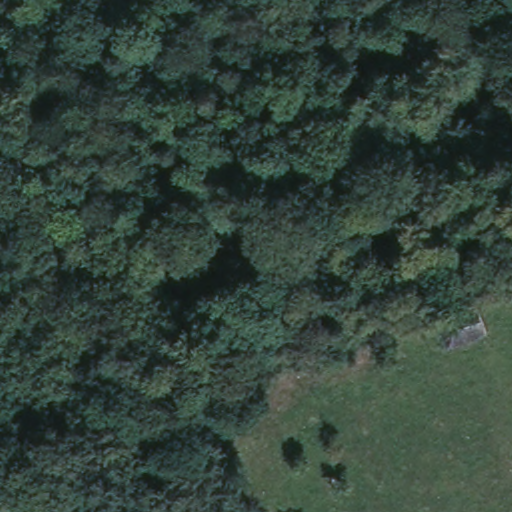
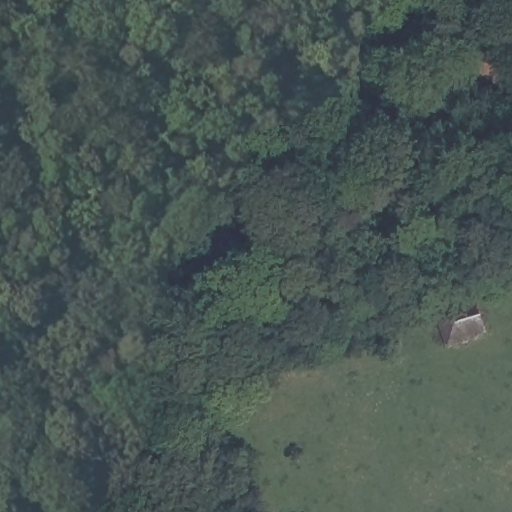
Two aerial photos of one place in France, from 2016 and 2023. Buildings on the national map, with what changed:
unchanged [(436,312),(475,296),(489,330),(451,345),(436,312)]

